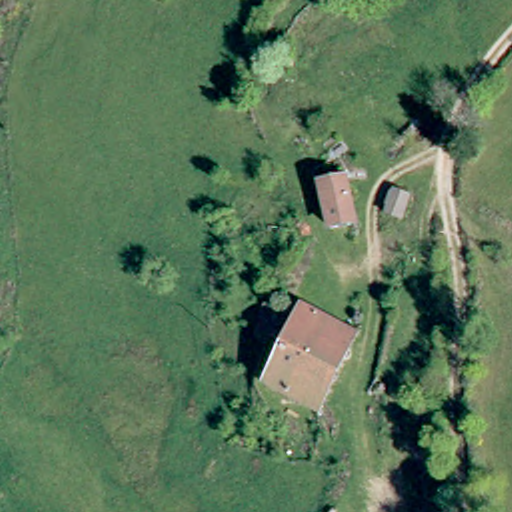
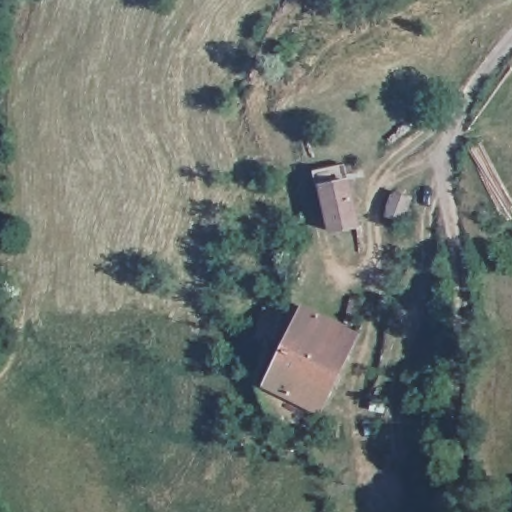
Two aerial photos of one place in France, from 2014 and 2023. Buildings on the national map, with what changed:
unchanged [(317,183),(342,180),(342,188),(345,222),(322,224),(320,220),(318,217),(320,215),(317,183)]
unchanged [(295,308),(348,335),(313,411),(260,386),(275,351),(263,346),(270,327),(285,332),(295,308)]

